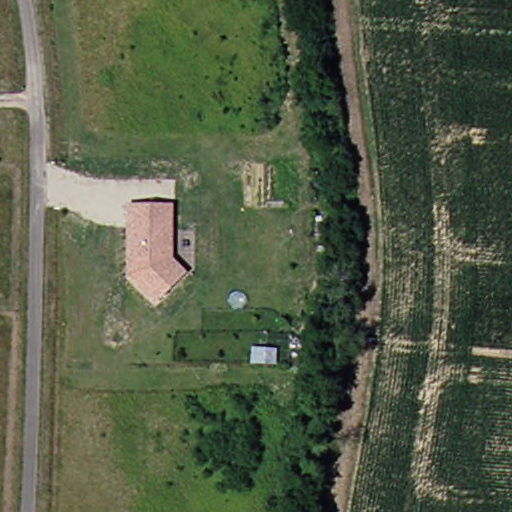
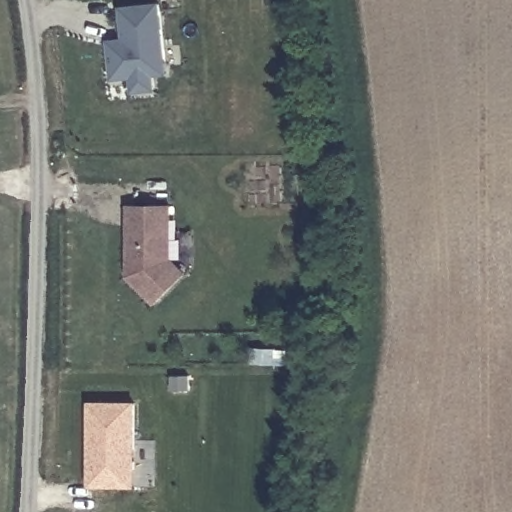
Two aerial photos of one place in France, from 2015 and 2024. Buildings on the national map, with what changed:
new [(130,94),(129,80),(110,81),(106,43),(122,42),(119,10),(157,7),(164,77),(151,78),(152,92),(130,94)]
unchanged [(169,260),(184,272),(154,306),(127,276),(126,205),(168,204),(169,260)]
new [(85,404),(132,405),(134,489),(111,488),(85,488),(85,404)]

